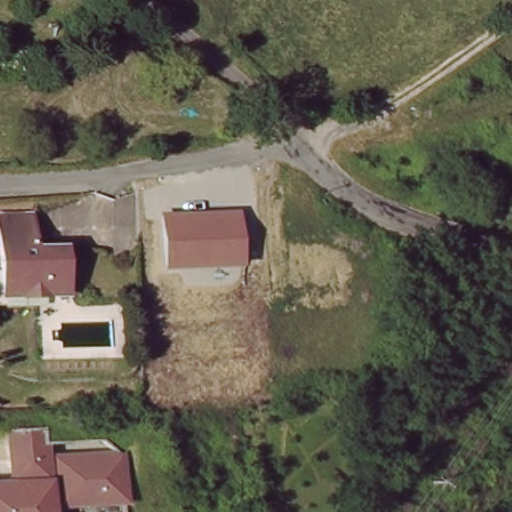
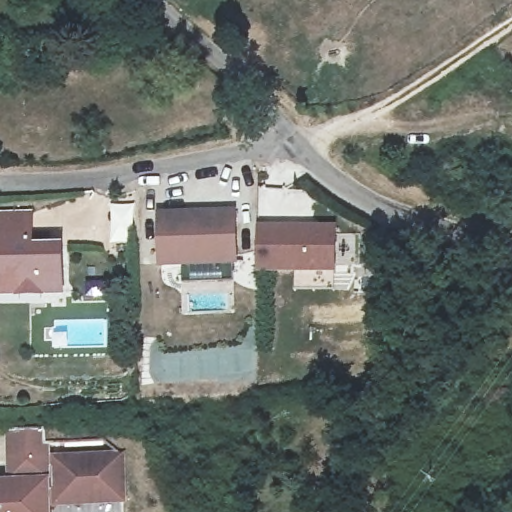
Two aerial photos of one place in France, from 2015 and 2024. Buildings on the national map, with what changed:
unchanged [(31,212),(33,243),(62,243),(62,283),(62,290),(44,292),(16,292),(0,293),(0,214),(31,212)]
unchanged [(237,261),(159,265),(157,215),(236,213),(237,261)]
new [(257,272),(257,229),(334,230),(334,273),(334,293),(294,293),(294,272),(257,272)]
unchanged [(5,483),(1,428),(28,426),(36,425),(38,456),(58,454),(115,450),(118,496),(57,501),(51,501),(50,488),(41,488),(42,512),(0,512),(0,483),(5,483)]

